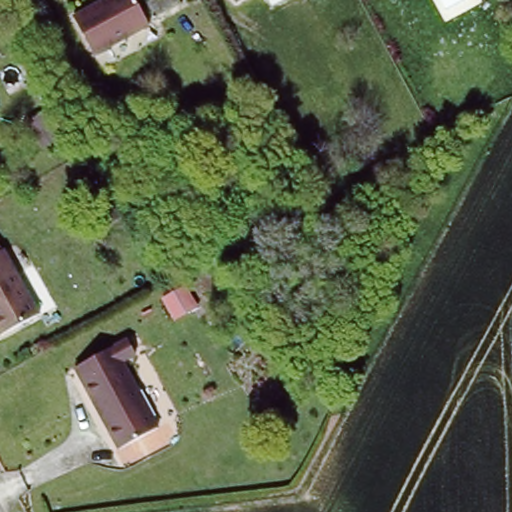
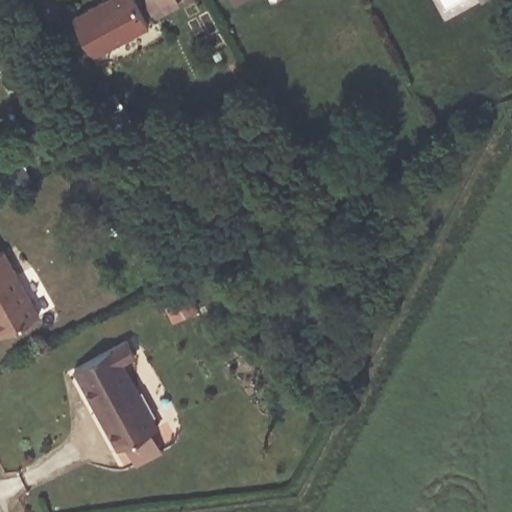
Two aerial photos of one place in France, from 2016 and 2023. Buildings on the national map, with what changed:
unchanged [(147,21),(91,51),(71,13),(96,0),(136,0),(147,21)]
unchanged [(235,1),(234,0),(238,0),(235,1)]
unchanged [(43,308),(3,329),(0,324),(0,248),(9,243),(43,308)]
unchanged [(125,358),(160,425),(120,445),(77,363),(130,336),(137,351),(125,358)]

